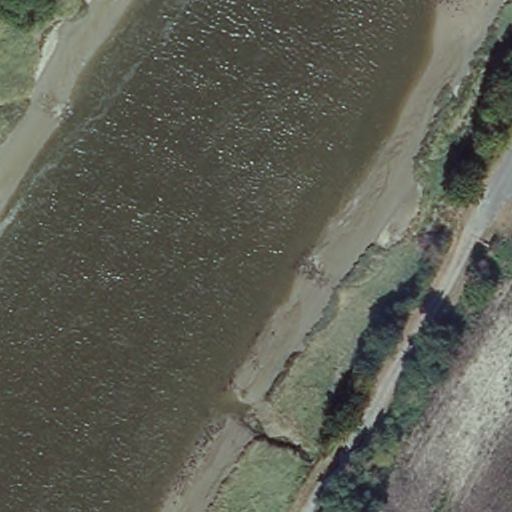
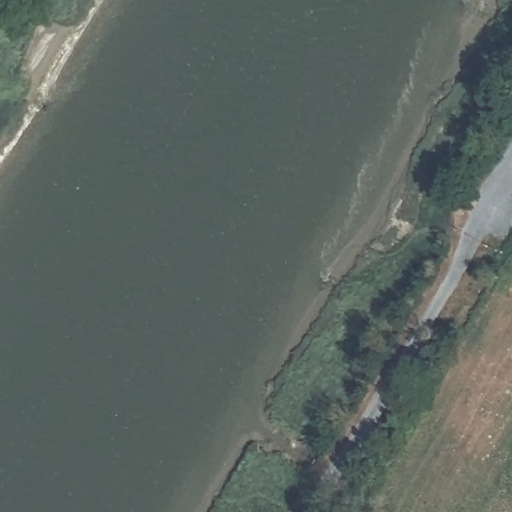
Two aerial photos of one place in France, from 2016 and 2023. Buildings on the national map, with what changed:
[]

